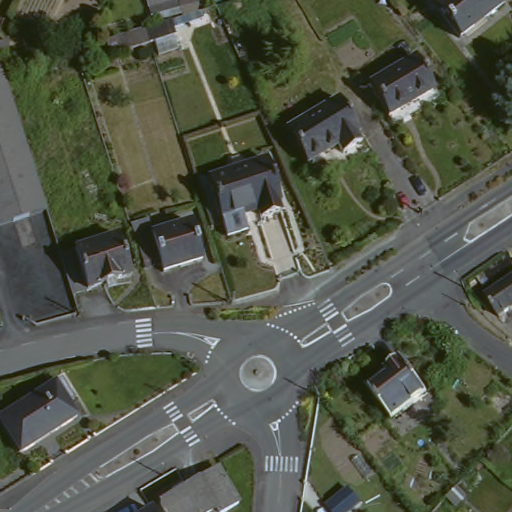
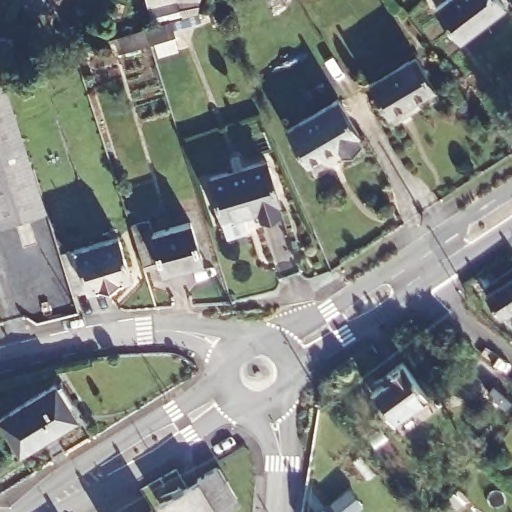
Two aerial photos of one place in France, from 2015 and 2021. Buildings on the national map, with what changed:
unchanged [(180,25),(177,12),(151,18),(147,0),(206,0),(212,17),(180,25)]
unchanged [(500,0),(504,5),(461,39),(436,7),(446,0),(500,0)]
unchanged [(177,12),(180,25),(183,34),(117,47),(114,31),(151,18),(177,12)]
unchanged [(43,95),(36,69),(71,58),(85,53),(88,65),(75,70),(79,82),(43,95)]
unchanged [(416,57),(436,89),(389,117),(370,85),(416,57)]
unchanged [(0,227),(0,66),(1,65),(2,72),(47,211),(0,227)]
unchanged [(340,100),(360,135),(359,137),(362,144),(342,156),(338,149),(307,165),(287,130),(340,100)]
unchanged [(262,220),(259,211),(223,221),(212,179),(269,161),(282,202),(280,205),(282,214),(262,220)]
unchanged [(142,225),(160,220),(164,233),(202,223),(212,262),(175,273),(172,265),(156,270),(142,225)]
unchanged [(71,255),(128,236),(142,277),(84,296),(71,255)]
unchanged [(512,280),(512,309),(500,316),(486,296),(512,280)]
unchanged [(398,356),(424,389),(390,415),(367,385),(380,375),(377,371),(398,356)]
unchanged [(6,416),(62,382),(82,415),(26,450),(6,416)]
unchanged [(161,502),(198,480),(199,477),(217,467),(240,502),(225,512),(218,512),(216,508),(210,512),(167,512),(161,502)]
unchanged [(355,487),(367,502),(354,512),(340,512),(333,504),(355,487)]
unchanged [(152,508),(155,512),(146,512),(152,508)]

